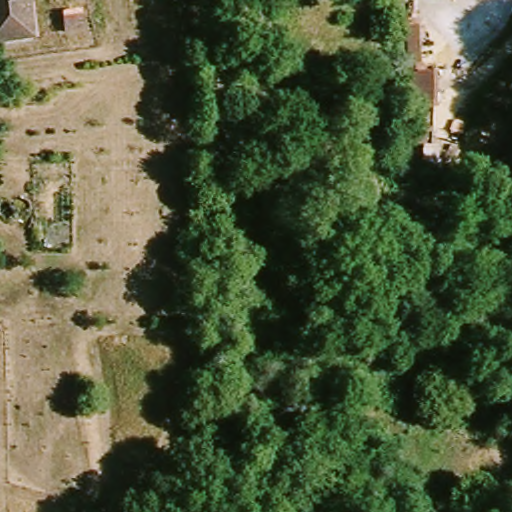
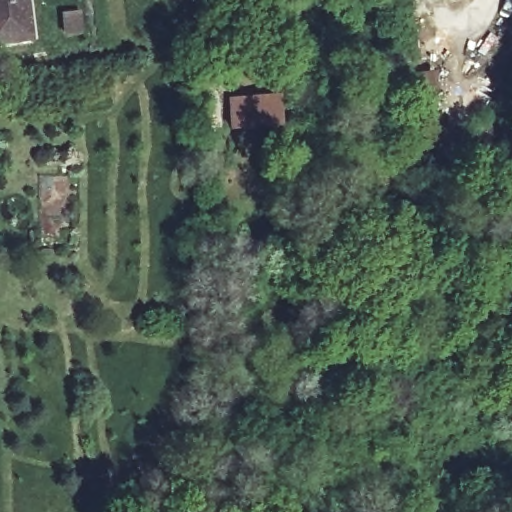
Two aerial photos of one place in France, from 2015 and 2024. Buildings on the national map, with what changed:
unchanged [(27,38),(0,41),(0,0),(23,0),(26,24),(27,38)]
unchanged [(392,67),(410,67),(410,79),(394,81),(392,67)]
new [(279,97),(280,130),(231,133),(230,99),(279,97)]

